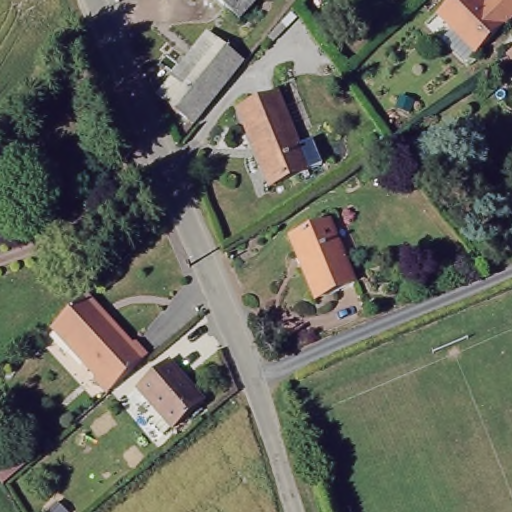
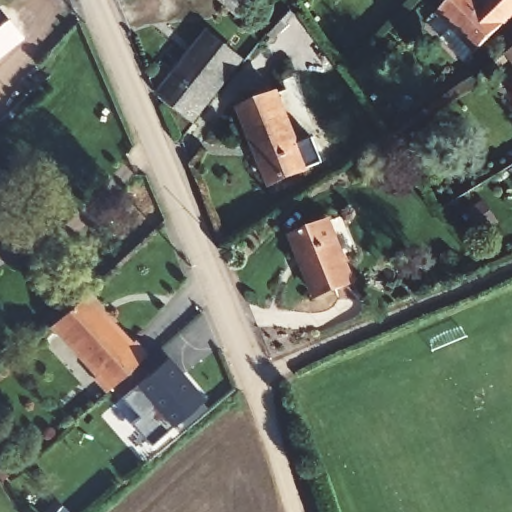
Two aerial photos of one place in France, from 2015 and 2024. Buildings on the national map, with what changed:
unchanged [(222,0),(255,0),(239,16),(222,0)]
unchanged [(485,0),(489,4),(493,0),(512,0),(512,21),(477,52),(442,14),(457,0),(485,0)]
new [(0,57),(0,10),(23,38),(0,57)]
unchanged [(242,56),(211,94),(188,121),(156,90),(206,27),(242,56)]
unchanged [(512,45),(512,60),(505,50),(512,45)]
unchanged [(282,87),(303,165),(264,176),(256,149),(261,148),(256,134),(251,135),(241,100),(282,87)]
unchanged [(338,222),(354,285),(316,296),(298,236),(338,222)]
unchanged [(88,294),(137,345),(141,341),(151,352),(116,382),(111,386),(102,376),(108,370),(60,320),(88,294)]
unchanged [(169,350),(207,398),(178,423),(140,376),(169,350)]

